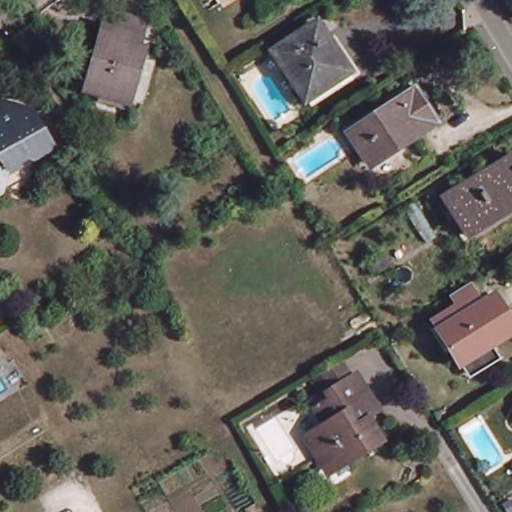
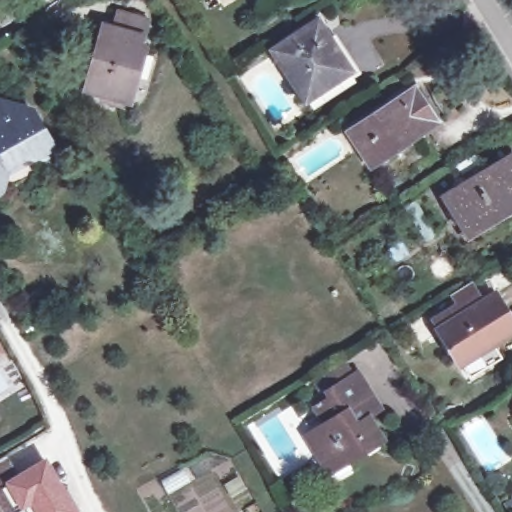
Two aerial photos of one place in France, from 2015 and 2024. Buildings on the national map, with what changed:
unchanged [(103,101),(105,95),(90,91),(84,90),(92,54),(99,56),(106,27),(115,30),(120,15),(149,22),(145,38),(127,101),(126,107),(103,101)]
unchanged [(310,102),(295,80),(288,85),(282,76),(290,71),(277,51),(317,24),(334,51),(338,49),(354,72),(339,83),(325,92),(310,102)]
unchanged [(34,26),(47,43),(32,55),(19,37),(34,26)]
unchanged [(417,89),(439,122),(373,164),(352,131),(417,89)]
unchanged [(22,107),(36,110),(40,119),(40,125),(45,127),(61,154),(50,161),(34,150),(6,165),(4,172),(7,174),(4,187),(0,190),(0,96),(24,102),(22,107)]
unchanged [(444,197),(512,155),(512,209),(467,237),(444,197)]
unchanged [(512,325),(512,333),(495,343),(498,358),(477,372),(466,367),(464,362),(460,365),(450,348),(445,352),(431,328),(475,302),(478,307),(495,297),(512,325)]
unchanged [(0,358),(0,346),(5,355),(0,358)]
unchanged [(329,467),(310,438),(330,427),(320,407),(335,397),(332,392),(362,373),(376,396),(387,412),(374,421),(387,442),(352,462),(332,473),(329,467)]
new [(19,507),(10,512),(0,512),(0,459),(7,456),(19,473),(47,457),(78,512),(26,512),(25,510),(20,512),(19,507)]

